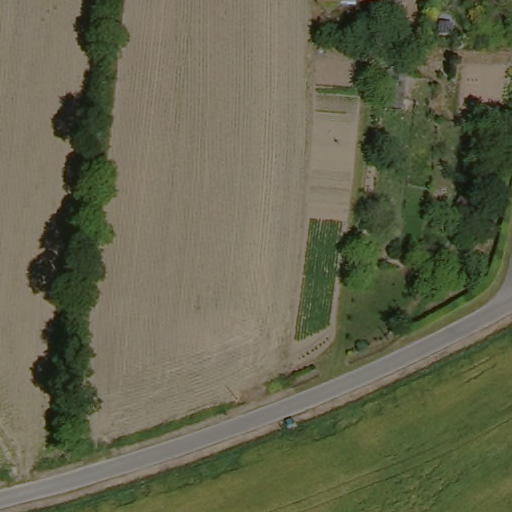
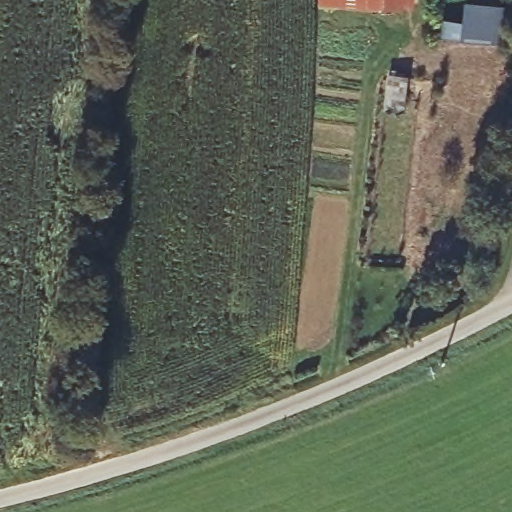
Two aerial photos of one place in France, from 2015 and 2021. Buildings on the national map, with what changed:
unchanged [(326,1),(326,0),(408,0),(408,2),(326,1)]
new [(499,41),(460,37),(464,0),(480,0),(504,3),(499,41)]

